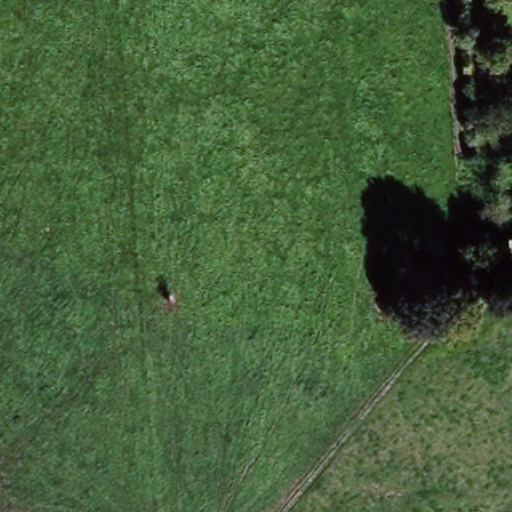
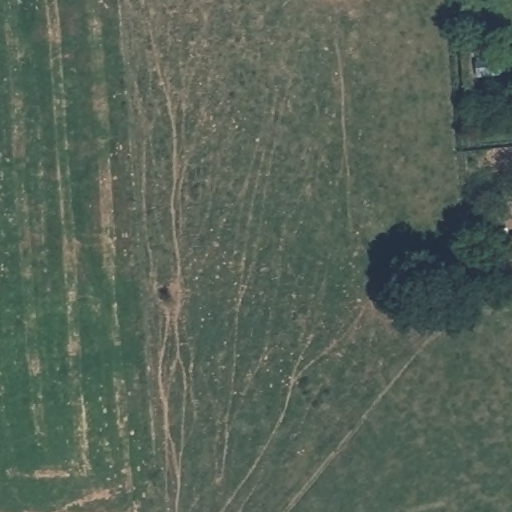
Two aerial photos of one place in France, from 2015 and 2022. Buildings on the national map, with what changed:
[]

